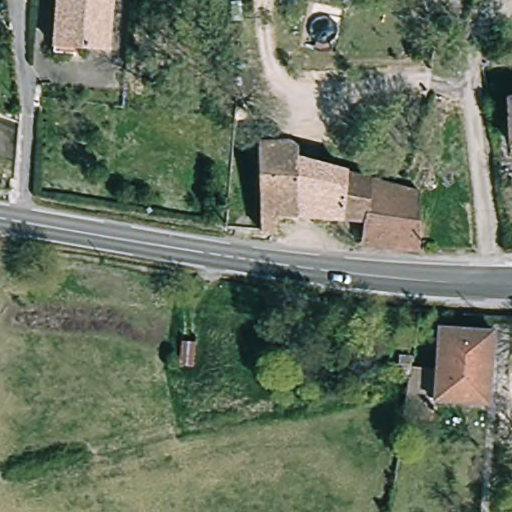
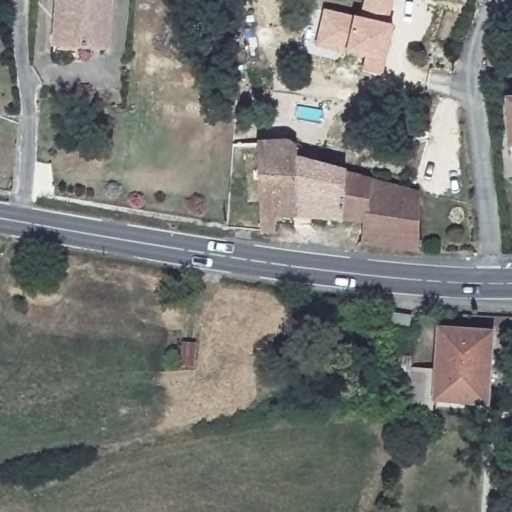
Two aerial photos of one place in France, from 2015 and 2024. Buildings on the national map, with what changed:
unchanged [(81,53),(57,51),(60,0),(113,0),(111,46),(81,46),(81,53)]
new [(361,18),(365,0),(394,0),(389,25),(395,26),(386,63),(317,46),(325,11),(361,18)]
unchanged [(265,136),(299,144),(298,164),(361,178),(355,221),(311,213),(273,209),(271,226),(255,225),(265,136)]
unchanged [(355,221),(361,178),(419,193),(413,253),(391,254),(353,245),(355,221)]
unchanged [(430,419),(404,414),(412,378),(416,359),(444,365),(452,326),(500,337),(487,394),(438,383),(436,392),(430,419)]

